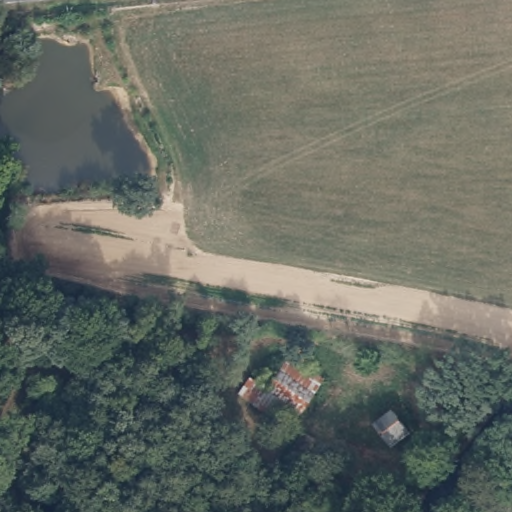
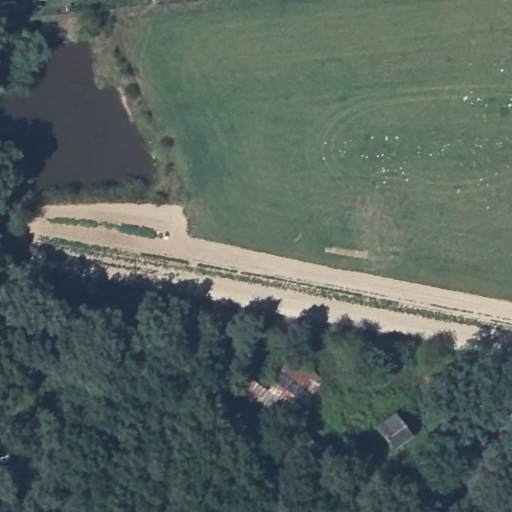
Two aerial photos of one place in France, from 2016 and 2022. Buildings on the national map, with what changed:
unchanged [(48,323),(45,342),(23,339),(25,320),(48,323)]
unchanged [(245,383),(260,392),(285,360),(318,383),(284,430),(236,396),(245,383)]
unchanged [(394,409),(410,433),(389,446),(373,423),(394,409)]
unchanged [(301,430),(321,446),(304,470),(284,454),(301,430)]

